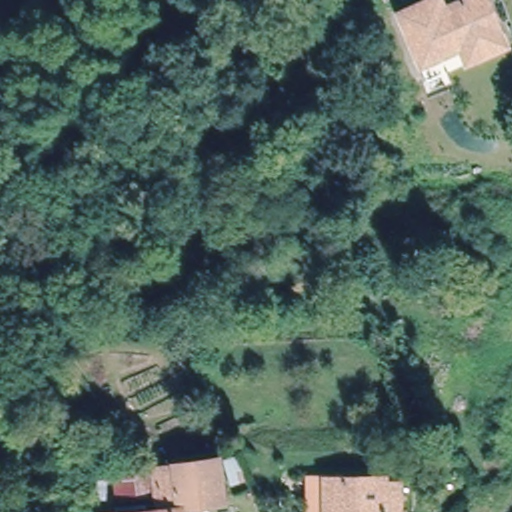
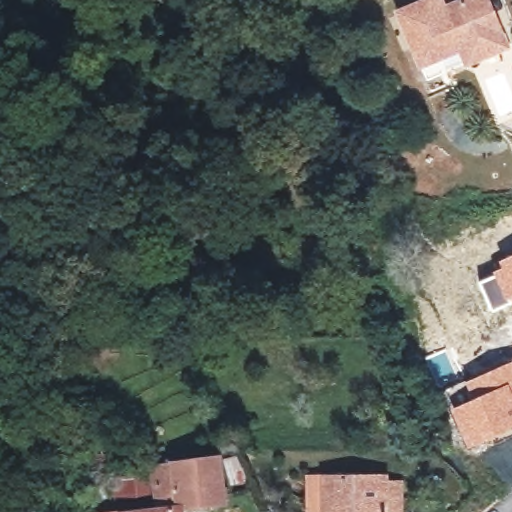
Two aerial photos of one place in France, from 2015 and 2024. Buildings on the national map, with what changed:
unchanged [(423,75),(394,9),(415,0),(436,0),(438,5),(450,0),(484,0),(501,41),(423,75)]
new [(493,271),(499,268),(496,261),(512,254),(512,304),(491,312),(478,282),(494,275),(493,271)]
new [(463,382),(512,361),(512,429),(467,449),(450,410),(470,400),(463,382)]
unchanged [(214,461),(219,507),(179,512),(155,512),(149,468),(214,461)]
unchanged [(289,512),(289,502),(309,502),(309,483),(365,482),(365,487),(381,487),(381,512),(289,512)]

